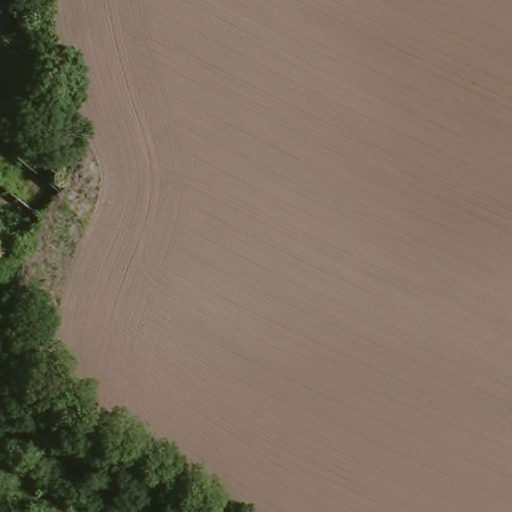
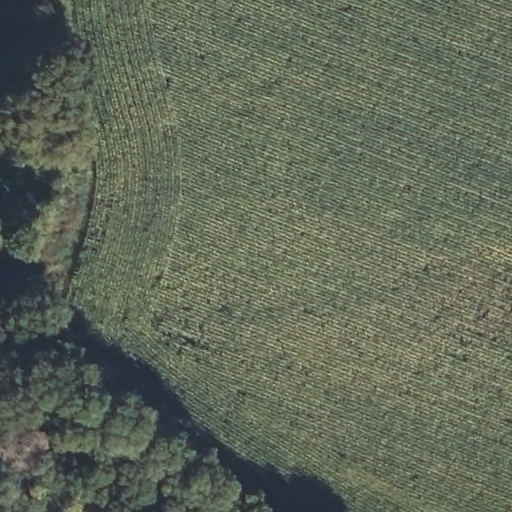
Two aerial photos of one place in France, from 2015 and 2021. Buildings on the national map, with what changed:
unchanged [(0,27),(0,10),(9,18),(0,27)]

